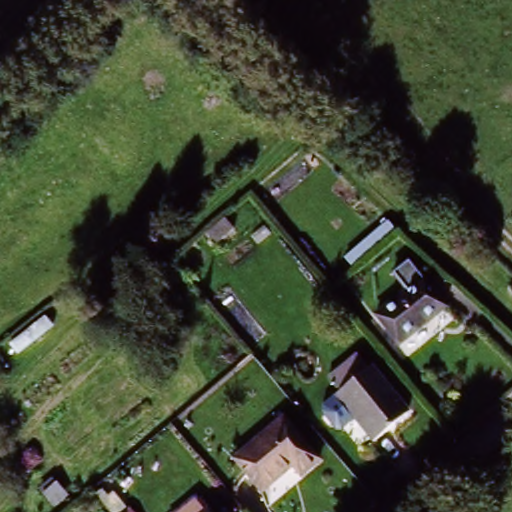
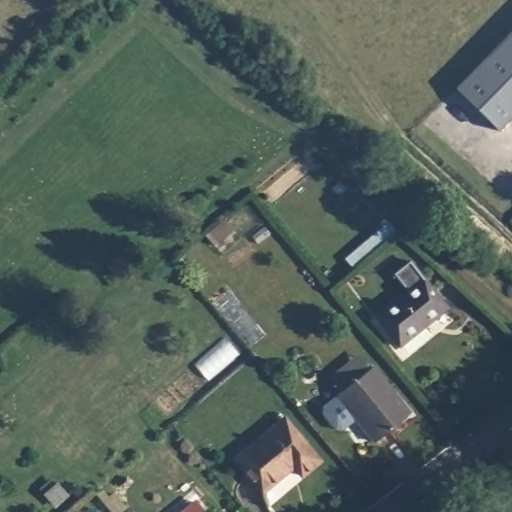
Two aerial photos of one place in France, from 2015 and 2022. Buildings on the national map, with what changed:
new [(512,33),(512,119),(499,133),(455,90),(512,33)]
unchanged [(353,273),(344,262),(387,226),(397,237),(353,273)]
unchanged [(393,270),(408,259),(445,305),(400,342),(377,313),(408,289),(393,270)]
unchanged [(389,388),(387,389),(405,413),(372,439),(337,392),(340,389),(330,375),(357,354),(368,367),(371,364),(389,388)]
unchanged [(283,416),(318,458),(300,473),(292,463),(262,488),(235,456),(283,416)]
unchanged [(207,509),(209,512),(203,512),(207,509)]

